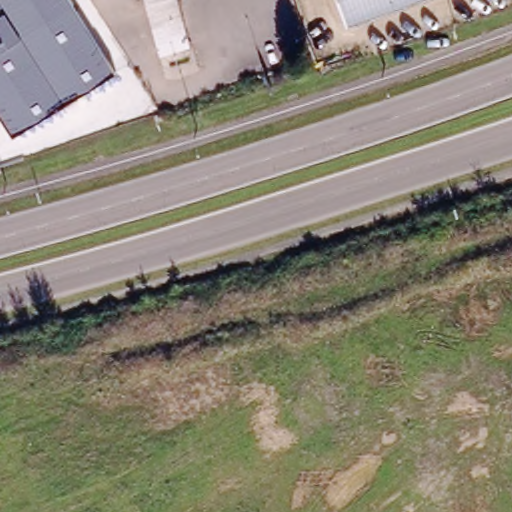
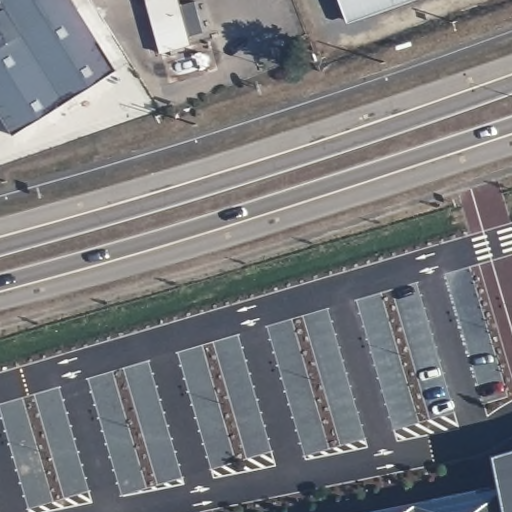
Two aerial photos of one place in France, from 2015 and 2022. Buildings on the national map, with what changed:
unchanged [(9,134),(0,120),(0,0),(73,0),(115,67),(9,134)]
unchanged [(157,58),(144,0),(176,0),(187,51),(157,58)]
unchanged [(339,0),(411,0),(347,22),(339,0)]
new [(512,483),(512,512),(369,512),(512,483)]

